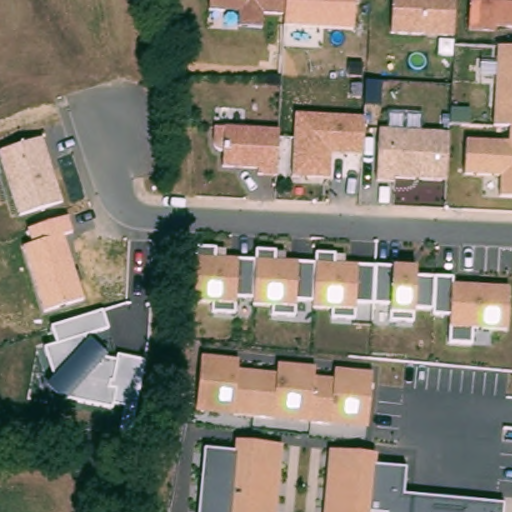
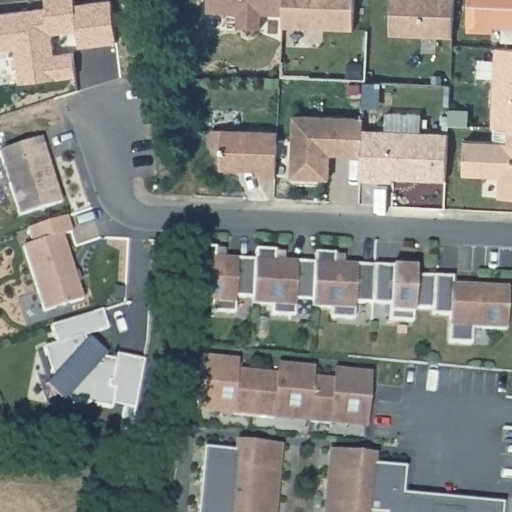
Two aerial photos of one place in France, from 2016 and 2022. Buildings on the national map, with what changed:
new [(47,0),(75,0),(75,5),(112,0),(116,42),(80,46),(77,30),(51,33),(54,55),(74,52),(76,76),(20,82),(16,47),(0,49),(0,13),(47,7),(47,0)]
unchanged [(265,14),(263,26),(236,26),(236,11),(207,9),(207,0),(356,0),(353,31),(281,26),(281,15),(265,14)]
unchanged [(454,0),(452,37),(390,35),(392,0),(454,0)]
unchanged [(512,0),(512,28),(492,27),(492,34),(465,30),(468,0),(512,0)]
unchanged [(500,177),(463,177),(465,138),(507,141),(508,129),(492,127),(497,44),(512,45),(512,199),(500,199),(500,177)]
unchanged [(293,113),(365,118),(363,157),(329,156),(327,180),(290,179),(293,113)]
unchanged [(255,175),(255,168),(220,166),(220,147),(210,146),(210,127),(278,130),(274,176),(255,175)]
unchanged [(378,130),(448,133),(446,181),(375,177),(378,130)]
unchanged [(0,152),(42,139),(61,202),(20,216),(0,152)]
unchanged [(22,248),(32,245),(27,230),(69,216),(74,234),(65,236),(83,300),(45,311),(22,248)]
unchanged [(450,315),(432,315),(432,307),(415,306),(414,322),(386,321),(387,302),(355,302),(355,317),(331,315),(330,306),(313,306),(313,298),(295,298),(294,315),(271,315),(271,303),(253,303),(252,296),(235,296),(234,314),(210,312),(210,303),(191,300),(195,249),(217,249),(217,257),(255,258),(255,251),(277,251),(276,259),(315,260),(315,252),(336,254),(335,263),(415,266),(415,273),(453,276),(453,285),(508,287),(506,329),(472,327),(471,343),(448,345),(450,315)]
unchanged [(53,395),(45,386),(53,377),(44,349),(56,345),(51,327),(104,310),(110,329),(88,336),(107,355),(105,358),(115,361),(117,354),(145,360),(139,409),(110,403),(110,407),(69,399),(53,395)]
unchanged [(194,408),(199,355),(238,360),(236,370),(275,373),(276,364),(315,367),(315,375),(332,377),(332,367),(371,372),(366,426),(194,408)]
unchanged [(203,448),(233,451),(235,439),(283,444),(277,512),(197,512),(203,448)]
unchanged [(330,447),(376,454),(375,463),(405,467),(403,493),(503,503),(502,512),(323,512),(330,447)]

